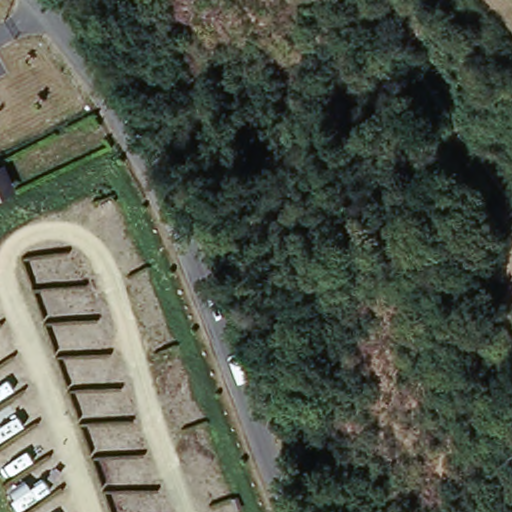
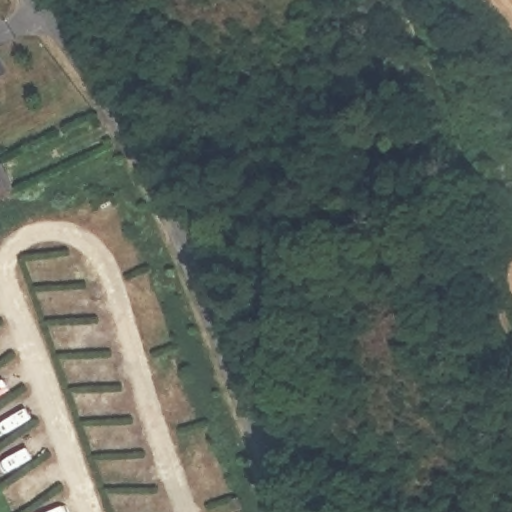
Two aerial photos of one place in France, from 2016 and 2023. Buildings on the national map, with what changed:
unchanged [(15,193),(0,199),(0,166),(4,165),(15,193)]

